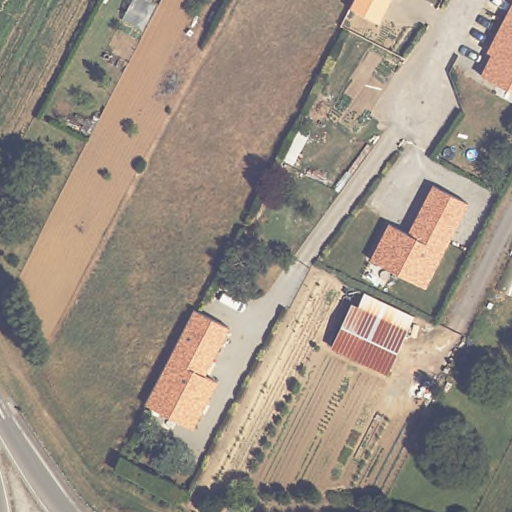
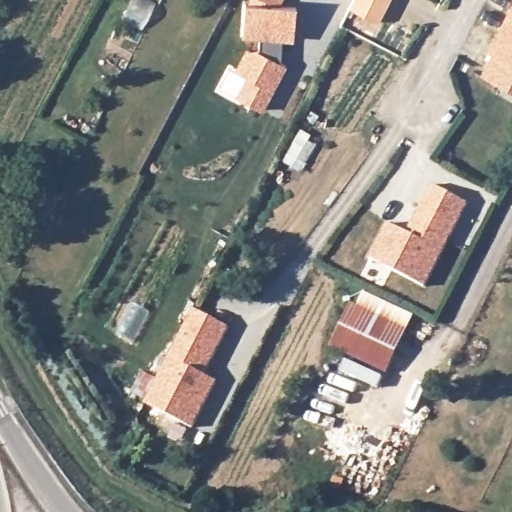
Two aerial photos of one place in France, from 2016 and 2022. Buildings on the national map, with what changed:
new [(234,70),(245,48),(250,51),(255,49),(257,39),(240,37),(244,2),(246,0),(280,0),(277,5),(294,6),(295,41),(280,40),(279,61),(287,65),(262,112),(235,97),(236,95),(219,86),(228,67),(234,70)]
unchanged [(354,4),(356,0),(393,0),(380,25),(351,10),(354,4)]
unchanged [(486,55),(512,4),(512,91),(481,77),(491,57),(486,55)]
unchanged [(466,205),(426,290),(368,262),(387,224),(408,234),(431,187),(466,205)]
unchanged [(350,301),(408,327),(386,375),(324,346),(350,301)]
unchanged [(194,306),(229,323),(203,373),(216,381),(192,427),(145,402),(194,306)]

